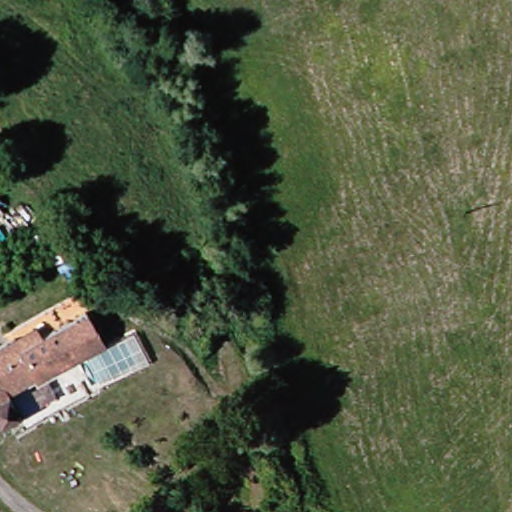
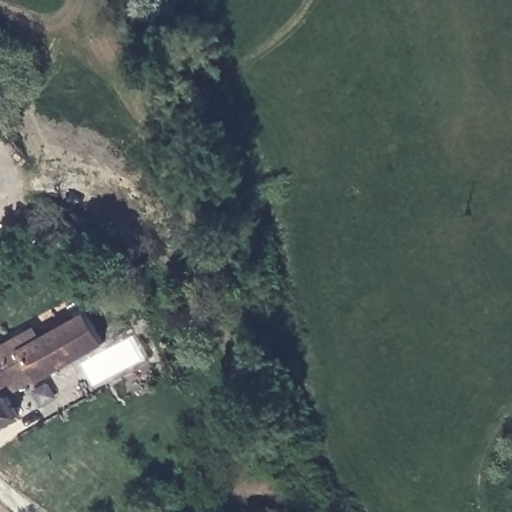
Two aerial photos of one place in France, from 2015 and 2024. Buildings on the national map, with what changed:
unchanged [(13,399),(21,417),(0,427),(0,426),(0,364),(86,315),(103,349),(13,399)]

